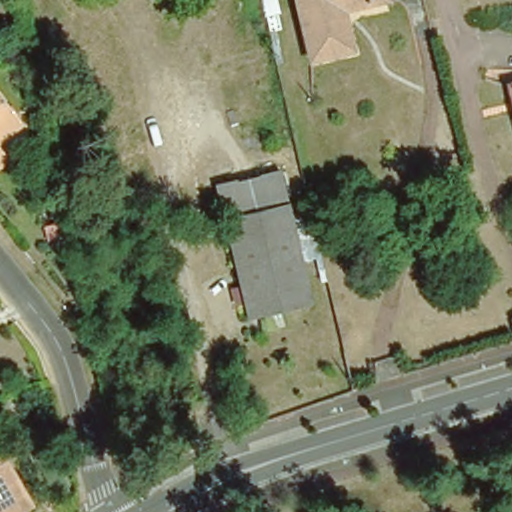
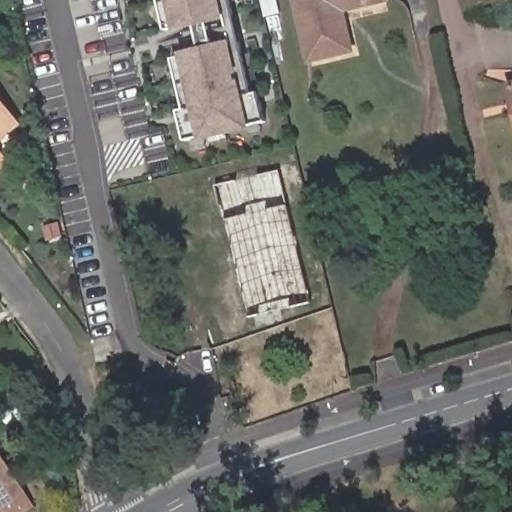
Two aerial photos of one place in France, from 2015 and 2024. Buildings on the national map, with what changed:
new [(224,14),(225,19),(173,32),(172,28),(166,29),(160,0),(232,0),(235,12),(224,14)]
unchanged [(385,1),(339,13),(348,55),(309,63),(295,0),(385,0),(385,1)]
new [(253,95),(257,93),(264,121),(251,125),(251,129),(200,140),(199,136),(185,139),(179,111),(186,109),(174,58),(180,57),(179,52),(231,40),(231,44),(242,42),(253,95)]
unchanged [(501,80),(512,78),(512,91),(504,93),(501,80)]
unchanged [(15,118),(0,130),(0,97),(15,118)]
unchanged [(512,109),(512,130),(507,110),(512,109)]
unchanged [(4,155),(0,158),(0,149),(4,155)]
unchanged [(240,316),(231,272),(218,217),(209,184),(205,169),(220,165),(224,180),(267,168),(276,204),(282,202),(292,247),(306,301),(240,316)]
unchanged [(43,229),(51,227),(54,241),(45,243),(43,229)]
unchanged [(19,504),(4,512),(0,512),(0,471),(19,504)]

